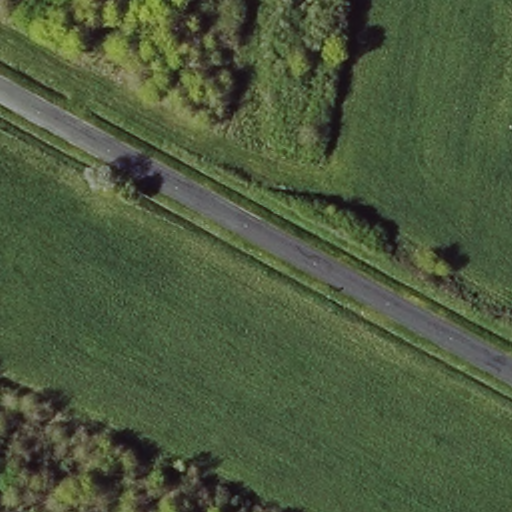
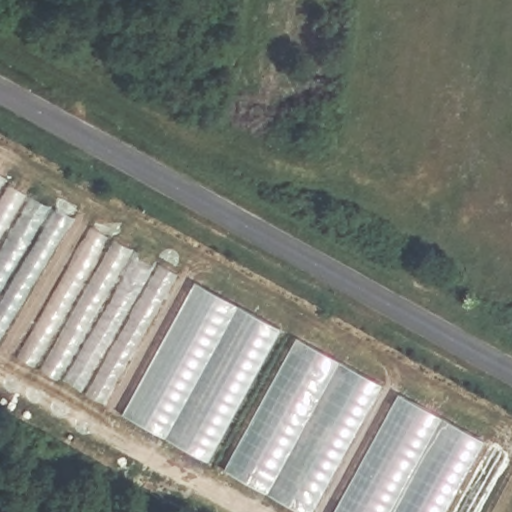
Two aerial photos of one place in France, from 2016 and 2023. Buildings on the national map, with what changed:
new [(0,344),(0,173),(76,217),(2,345),(0,344)]
new [(105,403),(20,359),(94,227),(178,272),(105,403)]
new [(302,512),(225,469),(297,337),(385,384),(315,512),(302,512)]
new [(334,512),(398,392),(487,440),(447,512),(334,512)]

